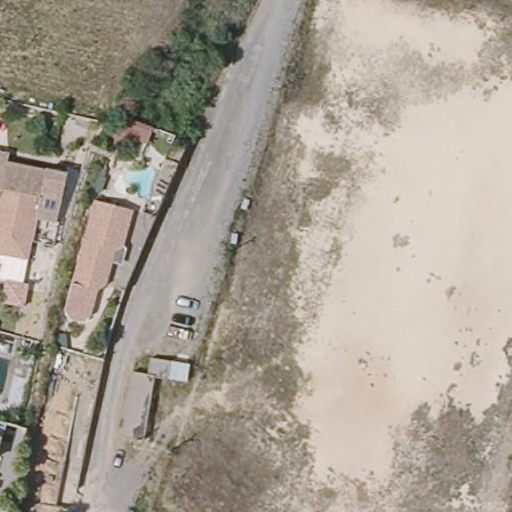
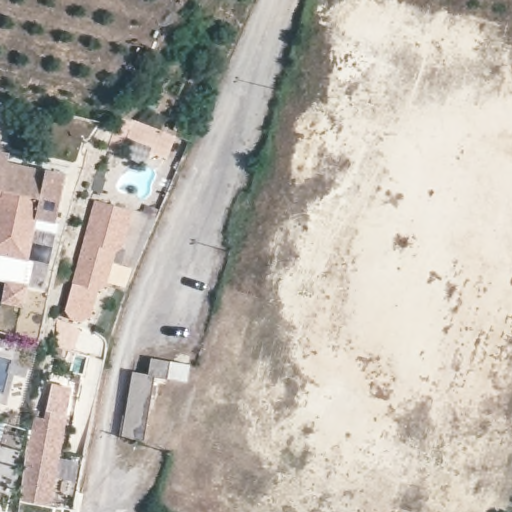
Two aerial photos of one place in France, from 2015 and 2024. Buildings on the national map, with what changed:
unchanged [(36,219),(30,218),(32,209),(2,203),(0,202),(0,153),(6,154),(4,161),(41,168),(40,170),(60,174),(50,221),(36,219)]
unchanged [(32,209),(30,218),(36,219),(26,263),(0,258),(0,202),(2,203),(32,209)]
unchanged [(71,285),(94,205),(134,221),(111,298),(96,294),(90,320),(83,325),(75,325),(66,321),(63,315),(71,285)]
unchanged [(154,375),(156,359),(176,362),(173,379),(160,377),(150,441),(129,438),(138,373),(154,375)]
new [(30,430),(34,398),(47,401),(49,394),(68,398),(50,489),(23,488),(30,430)]

